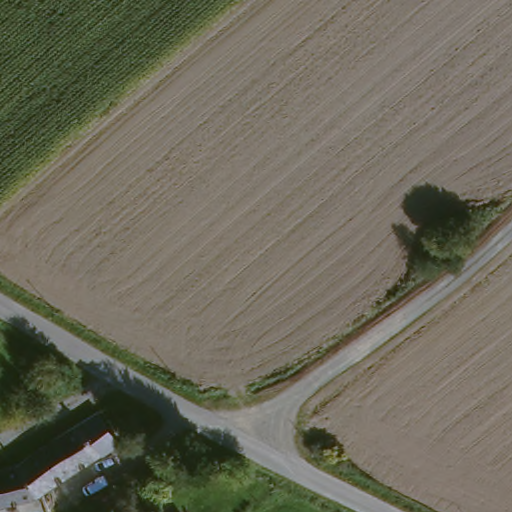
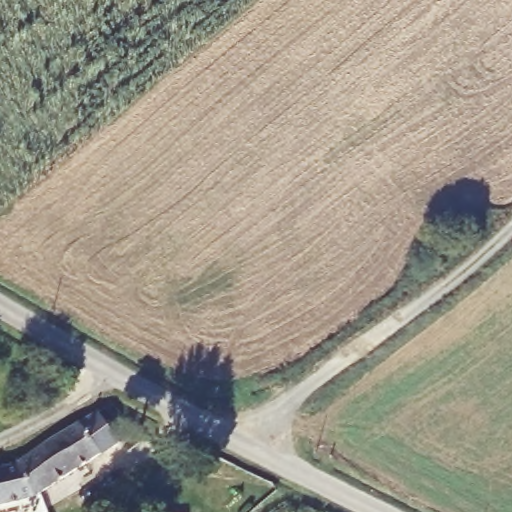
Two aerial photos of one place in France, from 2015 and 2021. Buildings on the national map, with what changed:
unchanged [(18,476),(81,433),(95,423),(119,429),(127,442),(100,459),(35,501),(18,476)]
unchanged [(18,476),(35,501),(0,511),(0,480),(18,476)]

